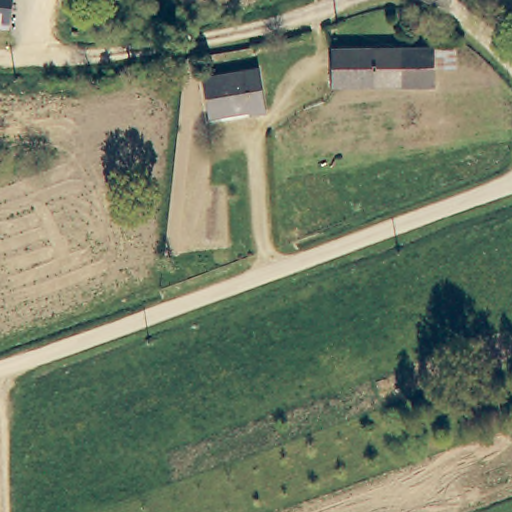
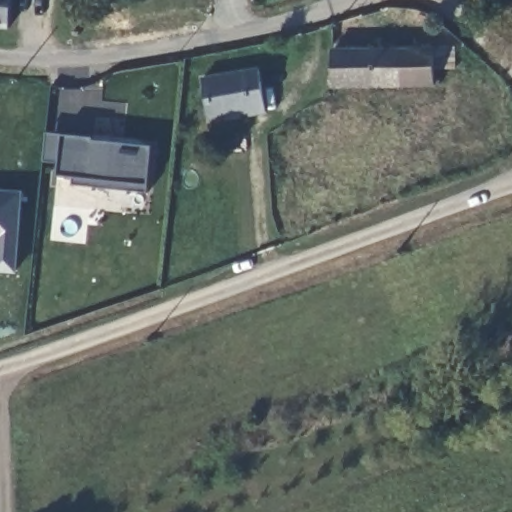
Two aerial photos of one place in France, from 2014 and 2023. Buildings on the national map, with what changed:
new [(9,28),(0,27),(0,0),(13,0),(9,28)]
unchanged [(71,9),(71,0),(89,0),(85,11),(71,9)]
unchanged [(495,8),(484,0),(502,0),(495,8)]
unchanged [(337,83),(335,46),(403,45),(404,83),(337,83)]
unchanged [(434,45),(434,82),(404,83),(403,45),(434,45)]
unchanged [(267,115),(250,117),(249,110),(207,114),(204,77),(261,71),(267,115)]
new [(148,189),(73,182),(74,176),(56,174),(57,160),(44,159),(48,131),(151,143),(148,189)]
new [(0,242),(0,189),(21,190),(20,244),(0,242)]

